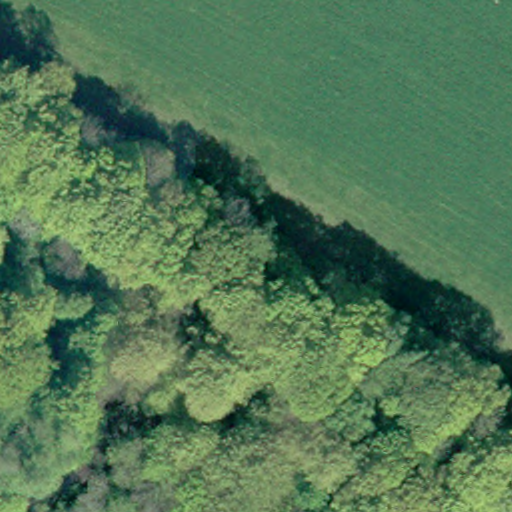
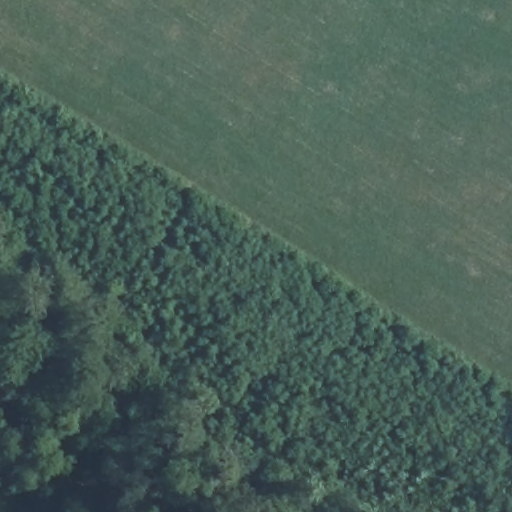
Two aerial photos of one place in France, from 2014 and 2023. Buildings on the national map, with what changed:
[]

